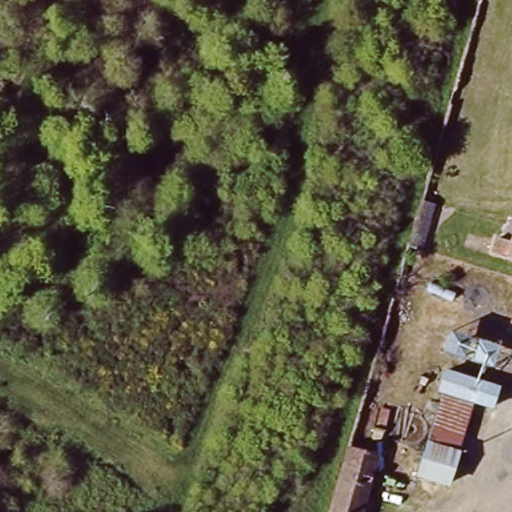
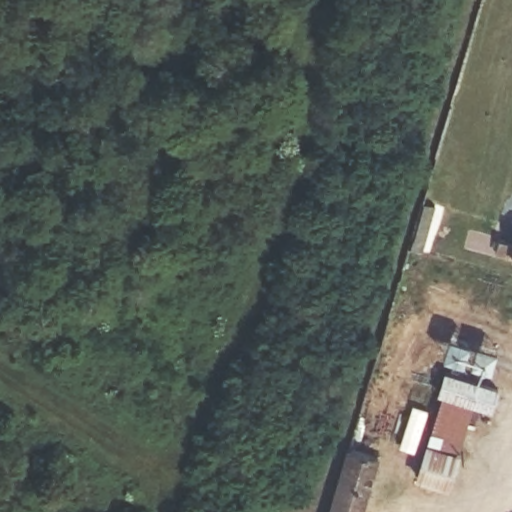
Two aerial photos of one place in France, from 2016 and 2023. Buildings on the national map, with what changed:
unchanged [(497,263),(507,230),(512,231),(512,267),(497,263)]
unchanged [(475,377),(504,386),(497,407),(477,401),(459,479),(430,472),(455,372),(475,377)]
unchanged [(342,482),(352,447),(378,456),(368,490),(362,512),(332,512),(342,482)]

